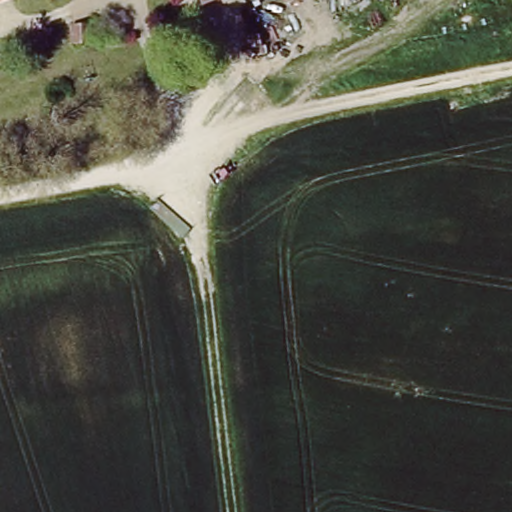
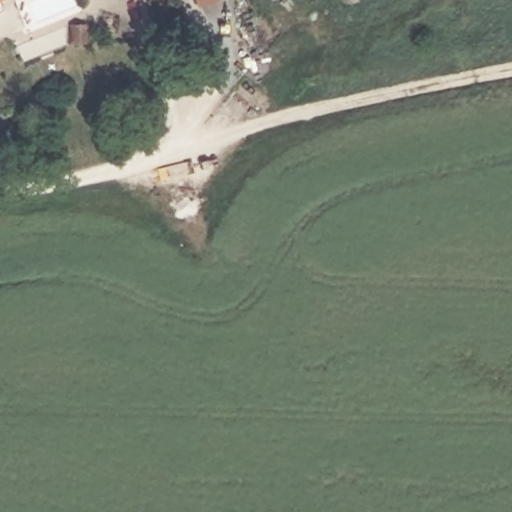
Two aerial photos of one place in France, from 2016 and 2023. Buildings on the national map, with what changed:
unchanged [(194,2),(193,0),(198,0),(194,2)]

